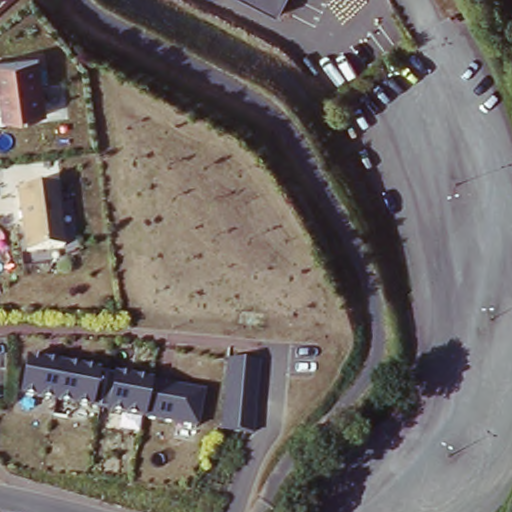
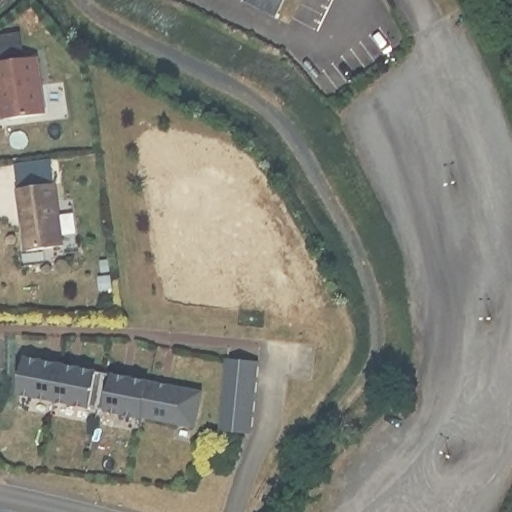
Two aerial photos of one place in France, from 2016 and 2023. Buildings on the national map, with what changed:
unchanged [(251,0),(291,0),(284,14),(251,0)]
unchanged [(43,59),(52,115),(2,122),(0,106),(0,65),(43,59)]
unchanged [(58,185),(67,245),(27,250),(19,190),(58,185)]
unchanged [(25,356),(99,370),(114,373),(151,381),(203,392),(196,428),(145,418),(105,411),(92,408),(18,393),(25,356)]
unchanged [(228,358),(260,362),(253,435),(221,431),(228,358)]

